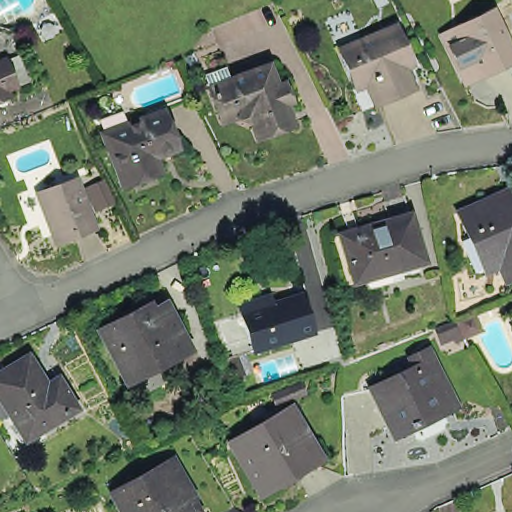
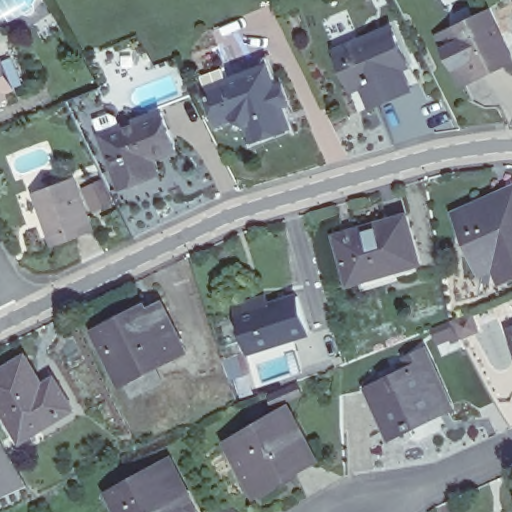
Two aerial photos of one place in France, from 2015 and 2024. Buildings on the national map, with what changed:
unchanged [(459,32),(495,15),(512,51),(512,63),(481,78),(465,85),(443,40),(459,32)]
unchanged [(368,110),(359,89),(349,93),(332,55),(388,32),(413,90),(368,110)]
unchanged [(272,71),(295,131),(261,144),(255,128),(241,123),(225,127),(211,87),(204,69),(225,61),(232,80),(234,85),(272,71)]
unchanged [(11,95),(6,97),(8,104),(0,107),(0,66),(11,95)]
unchanged [(92,134),(152,111),(166,148),(143,157),(148,173),(112,187),(92,134)]
unchanged [(53,244),(36,197),(74,183),(91,230),(53,244)]
unchanged [(512,187),(512,273),(497,280),(491,265),(478,271),(452,213),(512,186),(512,187)]
unchanged [(403,214),(417,262),(346,283),(332,235),(403,214)]
unchanged [(298,300),(310,337),(250,356),(238,320),(298,300)]
unchanged [(127,402),(119,386),(93,336),(142,311),(145,316),(158,310),(181,354),(150,370),(158,386),(127,402)]
unchanged [(512,339),(512,343),(511,340),(512,339)]
unchanged [(30,361),(49,391),(60,384),(78,414),(44,435),(39,427),(23,437),(12,419),(0,426),(0,380),(30,361)]
unchanged [(408,370),(425,361),(444,401),(430,408),(437,422),(391,444),(370,400),(412,379),(408,370)]
unchanged [(239,443),(275,422),(279,429),(295,419),(320,462),(287,481),(284,477),(265,488),(239,443)]
unchanged [(170,465),(196,512),(118,512),(110,498),(170,465)]
unchanged [(239,512),(224,512),(232,507),(239,512)]

